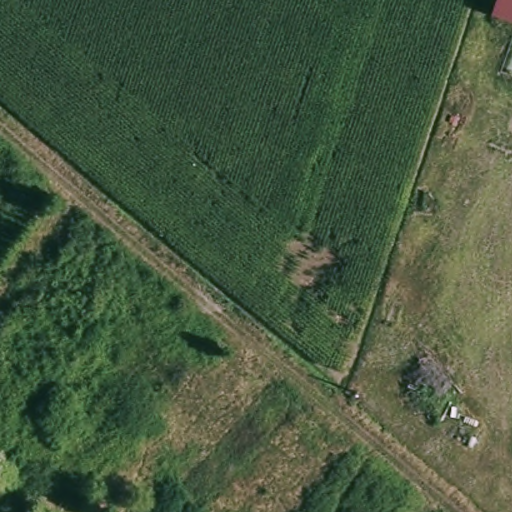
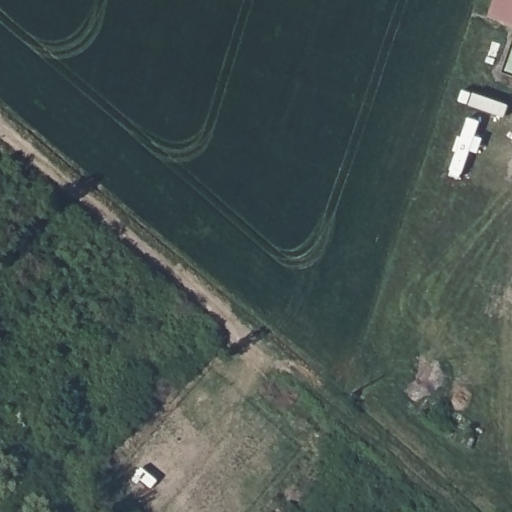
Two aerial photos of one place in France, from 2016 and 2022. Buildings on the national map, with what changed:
unchanged [(495,0),(512,0),(512,24),(490,17),(495,0)]

